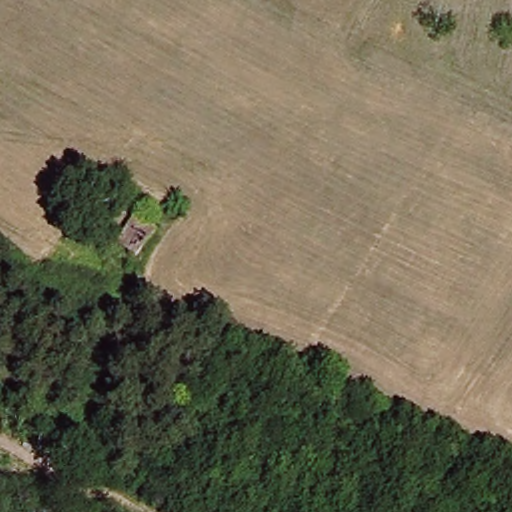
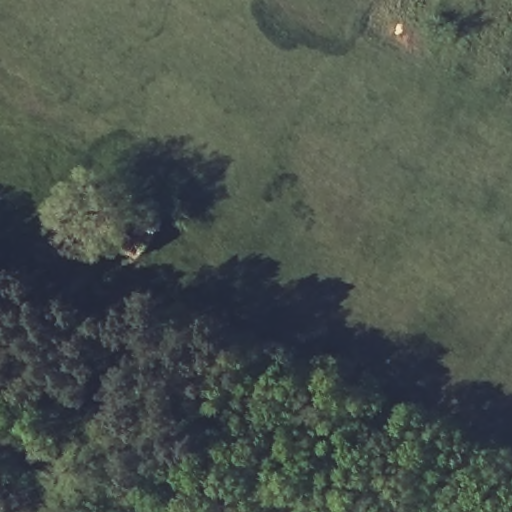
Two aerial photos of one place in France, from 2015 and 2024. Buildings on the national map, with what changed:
unchanged [(118,245),(135,223),(155,239),(138,260),(118,245)]

